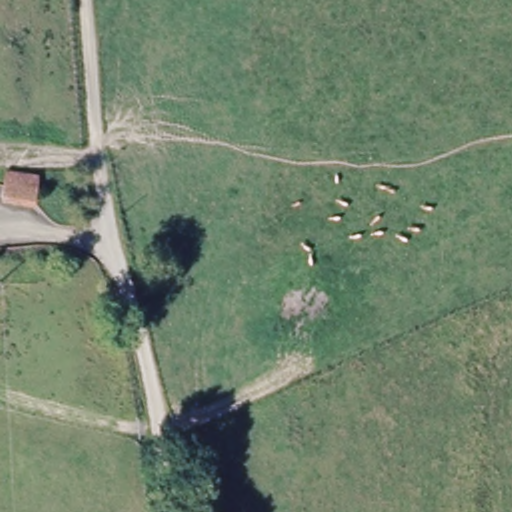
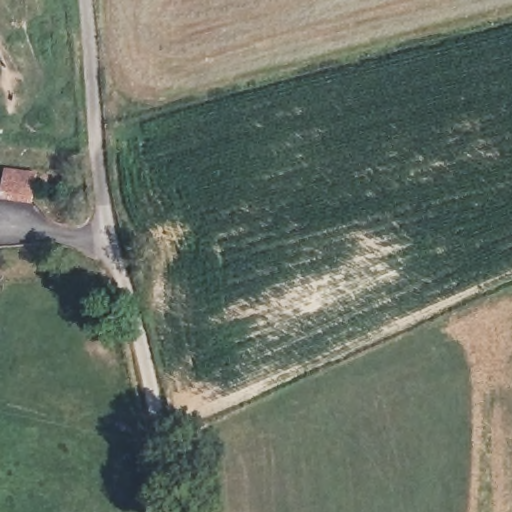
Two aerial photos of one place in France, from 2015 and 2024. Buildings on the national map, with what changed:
unchanged [(1,199),(7,171),(7,174),(37,179),(32,205),(1,199)]

